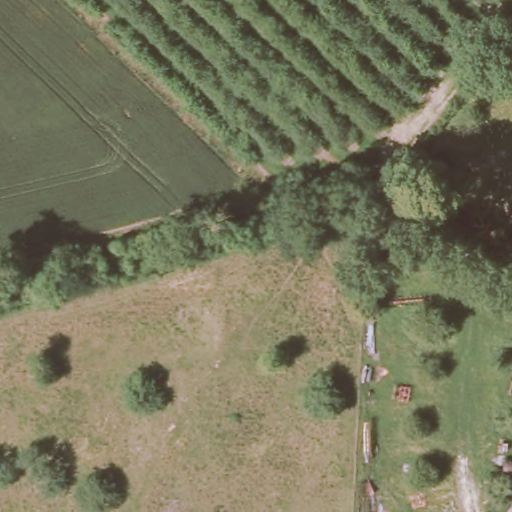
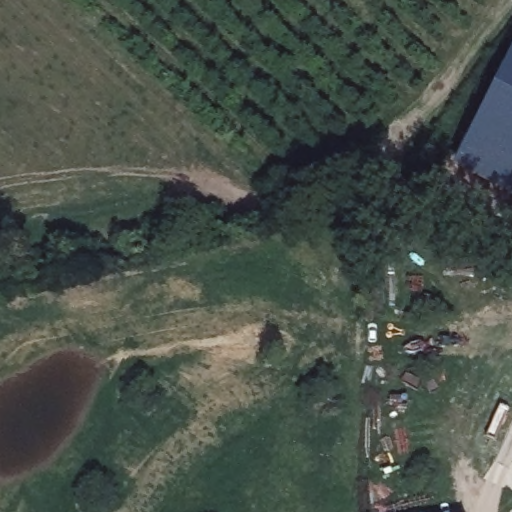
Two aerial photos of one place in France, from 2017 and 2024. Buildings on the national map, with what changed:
new [(456,169),(512,59),(512,197),(456,169)]

